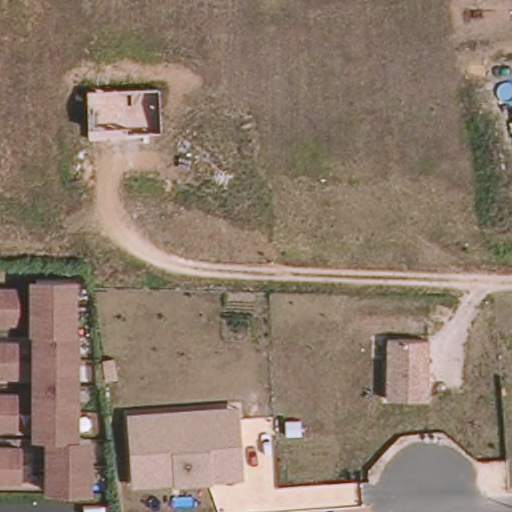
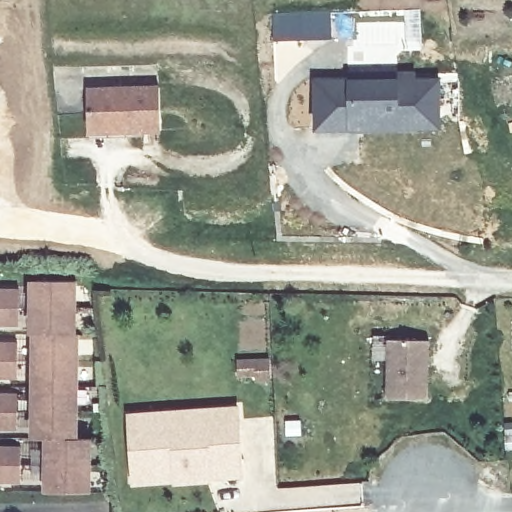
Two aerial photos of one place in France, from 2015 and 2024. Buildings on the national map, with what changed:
new [(331,9),(331,38),(272,40),(271,12),(331,9)]
new [(316,80),(349,80),(350,74),(412,73),(413,80),(441,80),(441,128),(314,129),(316,80)]
unchanged [(89,90),(159,87),(161,129),(127,130),(127,137),(91,138),(89,90)]
unchanged [(36,288),(41,288),(41,277),(81,277),(80,330),(83,330),(83,434),(86,434),(85,487),(46,487),(46,475),(41,475),(41,445),(46,445),(46,433),(43,434),(43,422),(38,422),(38,392),(43,392),(43,371),(39,371),(39,341),(44,341),(44,330),(41,330),(41,318),(36,318),(36,288)]
unchanged [(19,291),(19,325),(0,325),(0,291),(19,291)]
unchanged [(388,341),(431,342),(431,398),(388,397),(388,341)]
unchanged [(18,344),(18,378),(0,378),(0,344),(18,344)]
unchanged [(18,395),(18,429),(0,429),(0,395),(18,395)]
unchanged [(129,413),(171,409),(173,423),(238,419),(241,463),(213,466),(203,477),(189,479),(176,468),(133,470),(129,413)]
unchanged [(21,448),(21,481),(0,481),(0,448),(21,448)]

